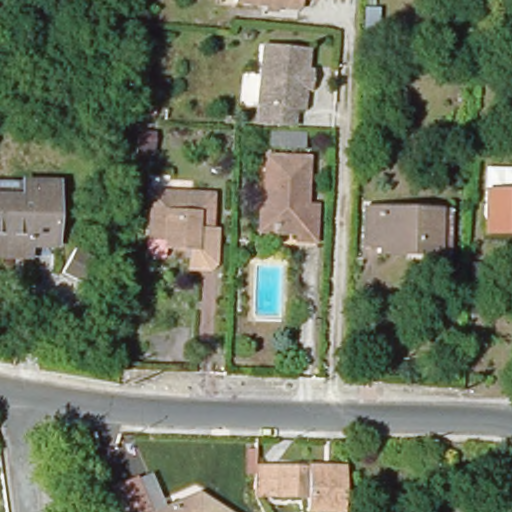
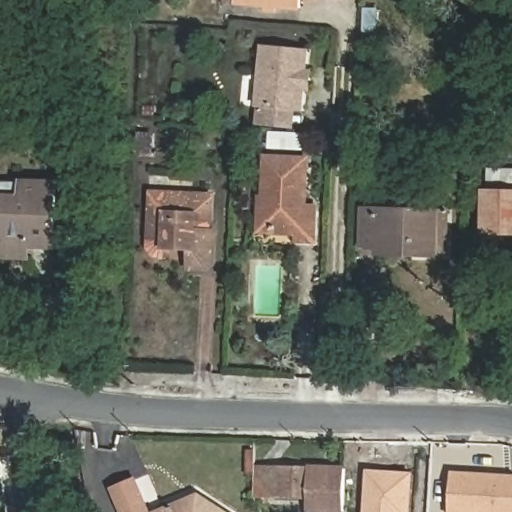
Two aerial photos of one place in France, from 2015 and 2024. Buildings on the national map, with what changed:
unchanged [(316,0),(316,6),(303,5),(302,13),(239,6),(239,0),(316,0)]
unchanged [(257,77),(259,52),(310,54),(309,74),(316,74),(315,93),(309,93),(307,114),(301,113),(299,131),(307,131),(307,155),(307,160),(272,159),(272,129),(254,128),(255,107),(246,106),(247,77),(257,77)]
unchanged [(307,160),(313,161),(311,208),(321,209),(320,243),(303,242),(302,232),(269,231),(270,195),(271,177),(272,159),(307,160)]
unchanged [(0,195),(22,196),(23,179),(61,180),(59,240),(59,250),(36,250),(35,261),(0,260),(0,195)]
unchanged [(155,258),(146,248),(146,238),(151,237),(153,192),(175,192),(194,193),(214,194),(212,240),(199,239),(197,249),(169,247),(168,258),(155,258)]
unchanged [(482,240),(482,196),(512,197),(512,241),(482,240)]
unchanged [(445,264),(430,263),(373,262),(373,253),(357,253),(358,214),(431,215),(446,216),(445,264)]
unchanged [(116,242),(89,247),(83,221),(110,215),(116,242)]
unchanged [(348,512),(317,512),(317,497),(299,496),(279,496),(266,495),(268,466),(280,467),(300,468),(350,470),(348,512)]
new [(411,512),(364,512),(367,469),(412,472),(411,512)]
new [(452,470),(512,474),(512,512),(449,512),(452,470)]
unchanged [(123,490),(143,482),(156,512),(132,512),(123,490)]
unchanged [(203,497),(224,512),(170,512),(203,497)]

